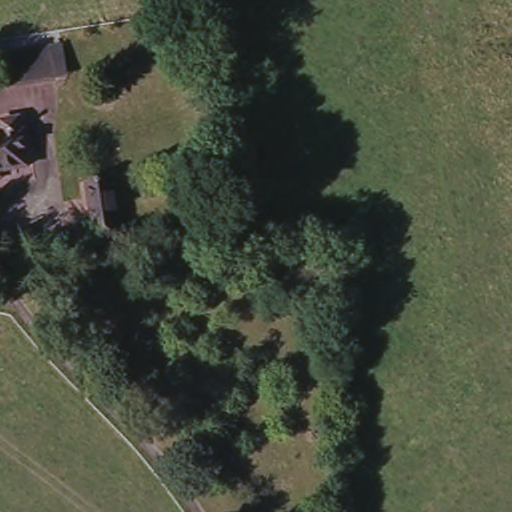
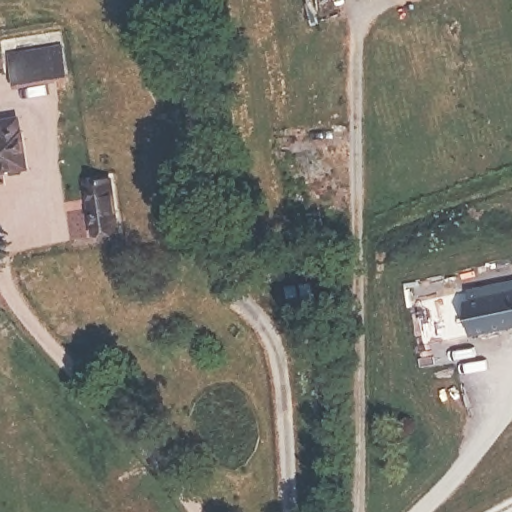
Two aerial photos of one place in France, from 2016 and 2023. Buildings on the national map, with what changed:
unchanged [(9,54),(48,52),(61,51),(63,76),(49,78),(12,80),(9,54)]
unchanged [(4,133),(3,120),(20,119),(21,131),(29,131),(31,166),(0,170),(0,133),(4,133)]
unchanged [(122,233),(101,235),(92,236),(89,175),(116,172),(122,233)]
new [(512,325),(471,328),(467,285),(512,282),(512,325)]

